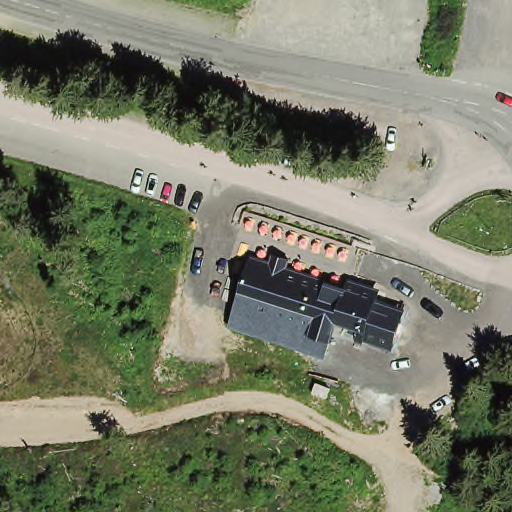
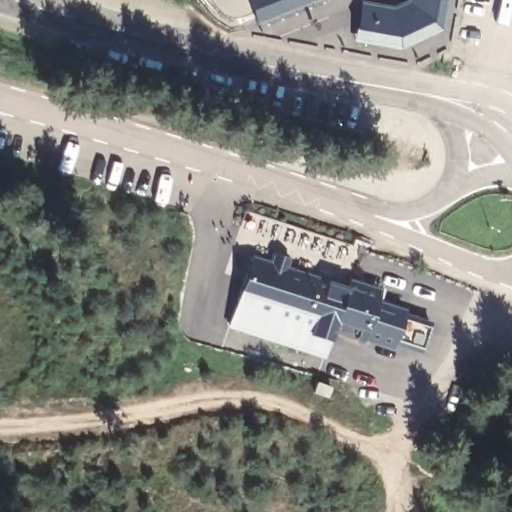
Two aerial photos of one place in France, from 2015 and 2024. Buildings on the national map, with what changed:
new [(255,26),(245,0),(320,0),(255,26)]
new [(442,31),(401,51),(355,44),(360,4),(395,9),(405,3),(405,0),(447,0),(442,31)]
unchanged [(229,327),(237,303),(252,260),(266,264),(269,254),(287,259),(284,270),(316,279),(347,289),(333,333),(329,331),(323,350),(321,357),(229,327)]
unchanged [(347,289),(350,279),(383,290),(380,301),(410,311),(397,351),(365,341),(363,344),(333,333),(347,289)]
unchanged [(335,410),(320,404),(324,394),(339,400),(335,410)]

